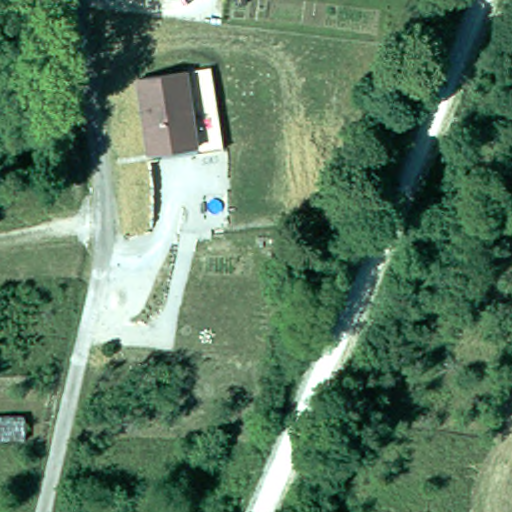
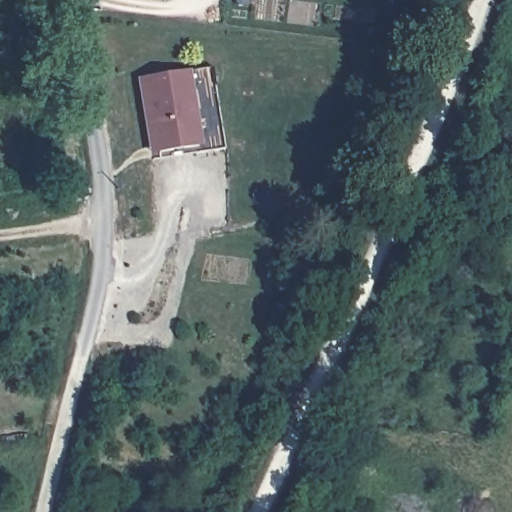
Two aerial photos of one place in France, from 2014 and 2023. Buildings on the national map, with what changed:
unchanged [(208,69),(221,151),(149,163),(146,149),(135,81),(208,69)]

